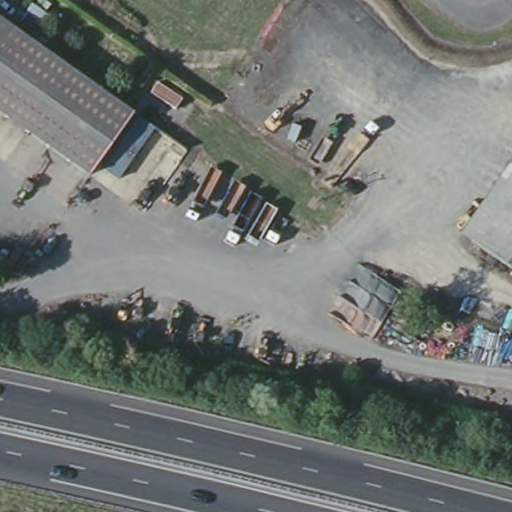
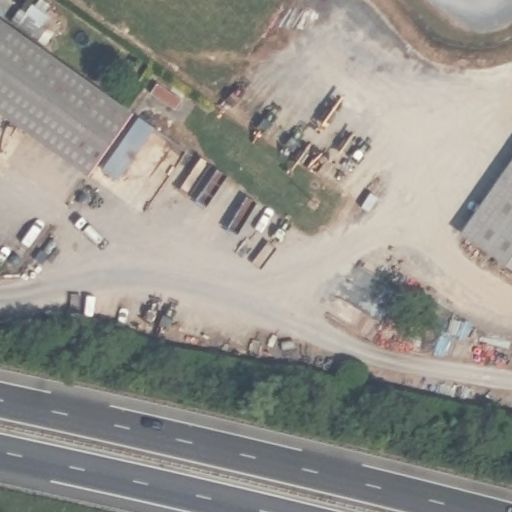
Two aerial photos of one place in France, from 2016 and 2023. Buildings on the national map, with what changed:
unchanged [(139,116),(95,177),(0,110),(0,16),(139,116)]
unchanged [(146,120),(160,131),(139,161),(123,181),(109,171),(124,151),(146,120)]
unchanged [(463,230),(512,159),(512,226),(493,212),(474,238),(463,230)]
unchanged [(512,264),(474,238),(493,212),(512,226),(512,264)]

